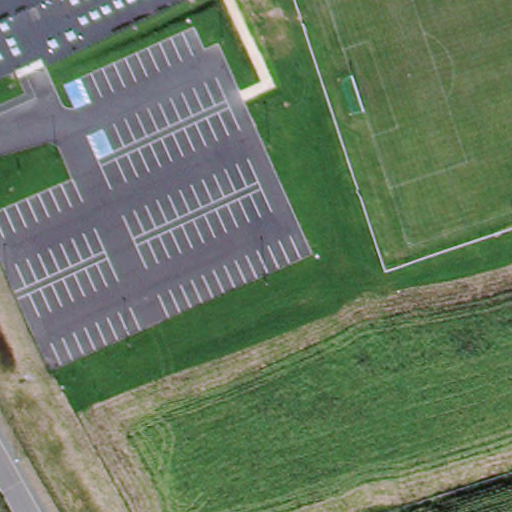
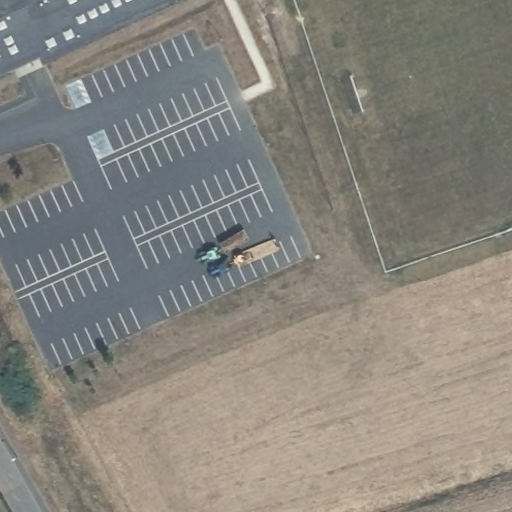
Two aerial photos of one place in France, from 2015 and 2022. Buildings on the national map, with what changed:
unchanged [(0,78),(0,0),(175,0),(0,78)]

